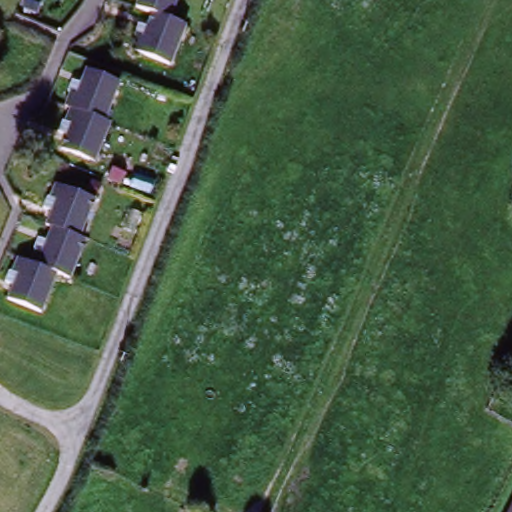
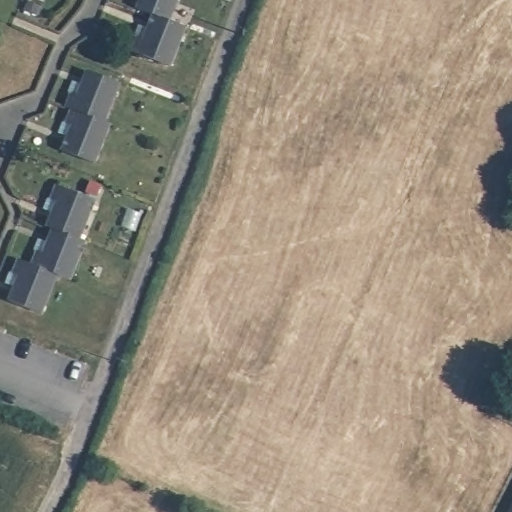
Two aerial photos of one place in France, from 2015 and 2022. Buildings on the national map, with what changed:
unchanged [(168,19),(154,13),(138,7),(141,0),(175,0),(168,19)]
unchanged [(186,27),(170,71),(133,57),(138,43),(131,38),(136,29),(146,32),(154,13),(168,19),(186,27)]
unchanged [(69,102),(71,94),(66,90),(71,75),(87,83),(91,70),(120,82),(106,117),(78,106),(69,102)]
unchanged [(70,133),(59,130),(66,115),(73,119),(78,106),(106,117),(115,120),(102,160),(64,148),(70,133)]
unchanged [(46,199),(52,200),(56,188),(93,204),(78,240),(55,229),(59,219),(40,210),(46,199)]
unchanged [(49,250),(36,244),(41,230),(53,235),(55,229),(78,240),(86,242),(69,281),(56,276),(39,268),(49,250)]
unchanged [(40,316),(13,303),(15,294),(4,289),(8,277),(14,277),(21,261),(39,268),(56,276),(40,316)]
unchanged [(510,512),(512,508),(512,512),(510,512)]

